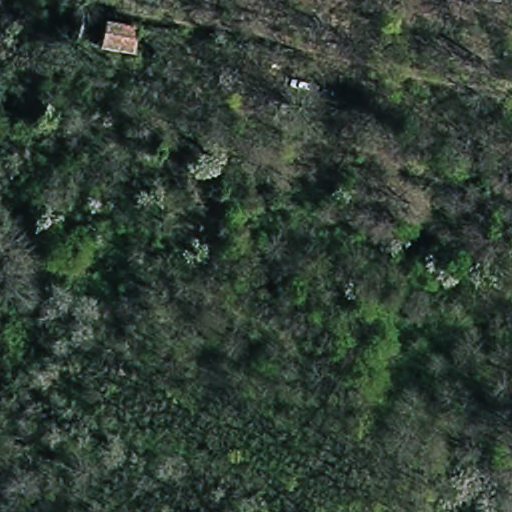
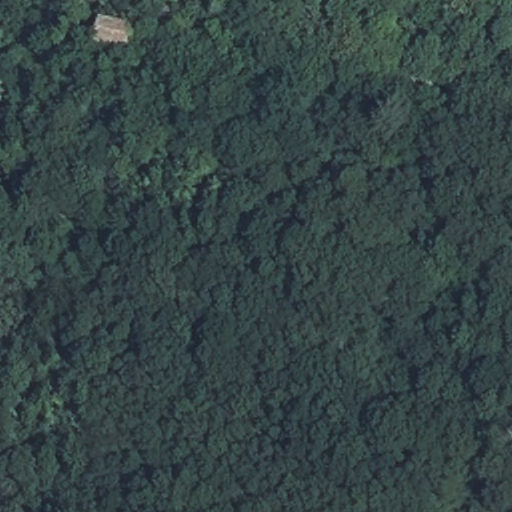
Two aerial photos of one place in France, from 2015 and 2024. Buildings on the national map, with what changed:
unchanged [(135,53),(100,47),(105,19),(137,24),(135,53)]

